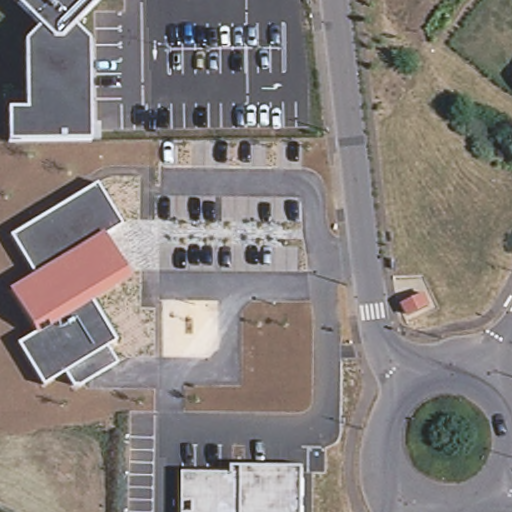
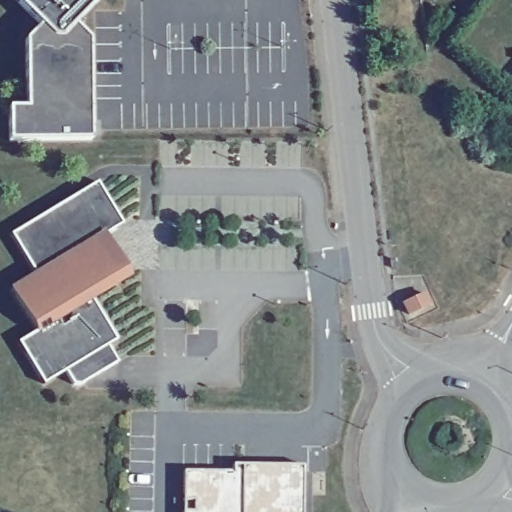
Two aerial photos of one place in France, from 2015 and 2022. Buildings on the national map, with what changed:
unchanged [(26,108),(25,40),(41,25),(14,0),(99,0),(74,26),(89,40),(91,139),(9,139),(9,108),(26,108)]
unchanged [(17,344),(36,332),(10,290),(34,274),(10,235),(97,183),(125,229),(108,240),(132,277),(93,302),(116,340),(107,346),(117,362),(75,387),(66,372),(43,386),(17,344)]
unchanged [(407,304),(427,295),(432,307),(412,316),(407,304)]
unchanged [(184,472),(232,473),(232,466),(303,467),(303,512),(183,512),(184,472)]

